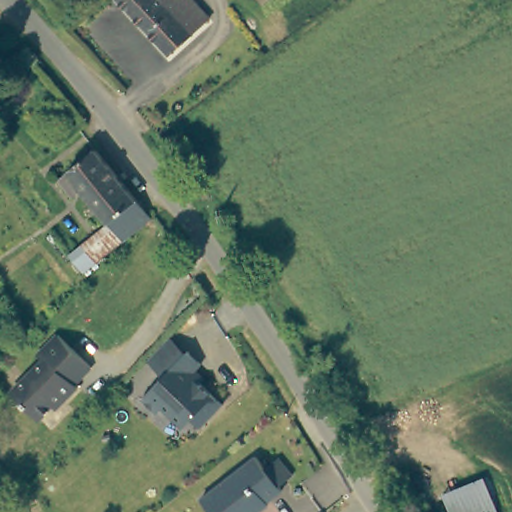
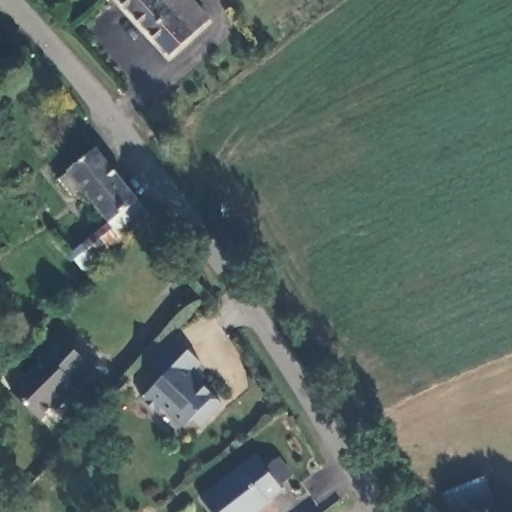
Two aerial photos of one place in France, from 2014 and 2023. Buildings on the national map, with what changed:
unchanged [(112,0),(193,0),(209,17),(165,59),(112,0)]
unchanged [(85,195),(65,171),(91,150),(146,217),(120,239),(93,262),(81,249),(110,226),(85,195)]
unchanged [(89,369),(71,384),(74,387),(59,400),(56,396),(33,417),(10,391),(7,387),(41,357),(37,352),(58,333),(62,338),(89,369)]
unchanged [(158,404),(151,411),(136,397),(158,373),(142,358),(163,336),(180,352),(181,350),(194,363),(189,368),(198,377),(194,381),(217,403),(202,419),(195,426),(186,417),(179,425),(158,404)]
unchanged [(263,452),(272,463),(285,453),(299,471),(286,482),(289,486),(275,497),(277,499),(260,512),(225,512),(210,492),(263,452)]
unchanged [(451,512),(443,492),(485,476),(498,512),(451,512)]

